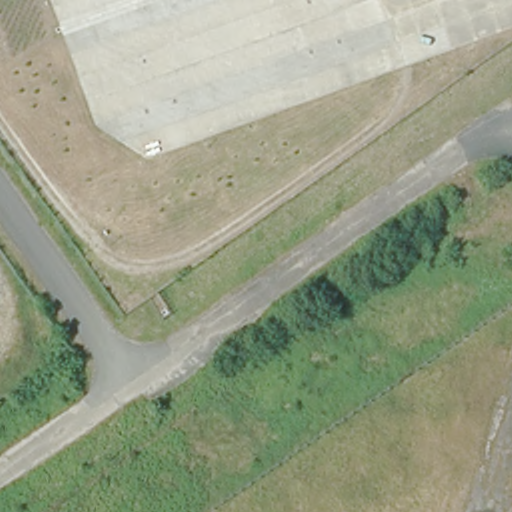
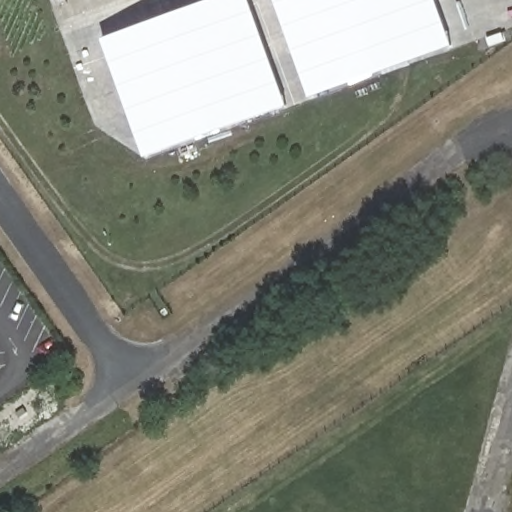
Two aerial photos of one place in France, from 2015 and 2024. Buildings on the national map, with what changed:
new [(207,0),(250,0),(289,106),(146,157),(101,39),(207,0)]
new [(453,45),(310,98),(275,0),(437,0),(453,45)]

